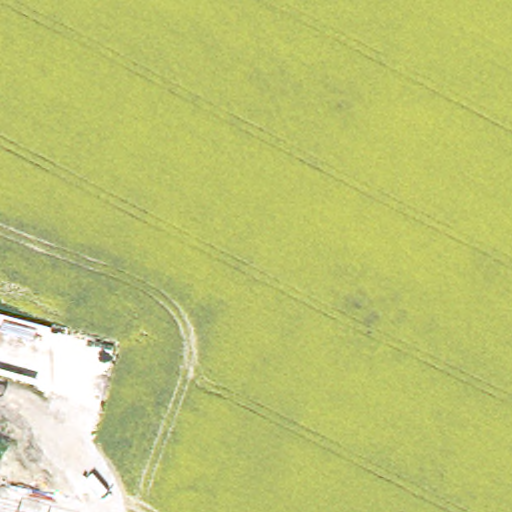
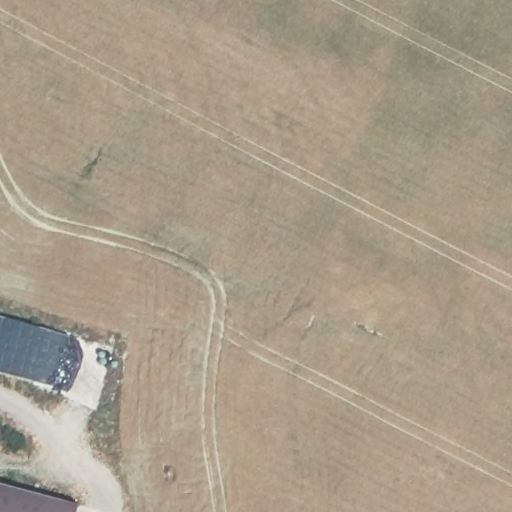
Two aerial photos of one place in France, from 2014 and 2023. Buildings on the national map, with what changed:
new [(77,512),(0,512),(0,483),(79,504),(77,512)]

